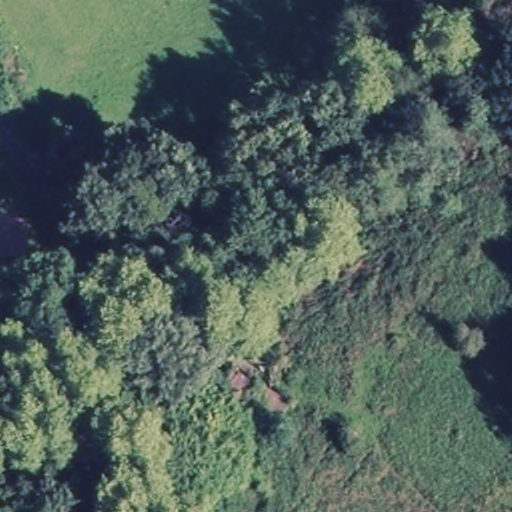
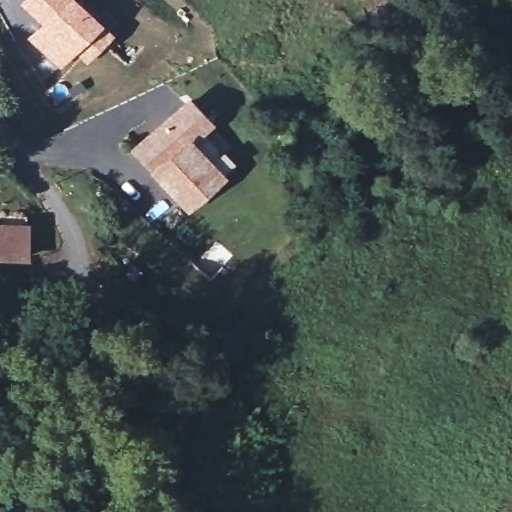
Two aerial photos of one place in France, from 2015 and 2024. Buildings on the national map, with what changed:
new [(86,63),(75,52),(60,66),(26,36),(39,21),(19,2),(21,0),(80,0),(103,21),(115,32),(86,63)]
new [(215,122),(194,140),(227,177),(188,212),(150,170),(130,150),(189,94),(215,122)]
unchanged [(0,258),(0,232),(20,232),(20,258),(0,258)]
unchanged [(286,411),(270,440),(239,420),(245,410),(220,395),(230,377),(286,411)]
unchanged [(365,440),(352,450),(340,435),(353,426),(365,440)]

